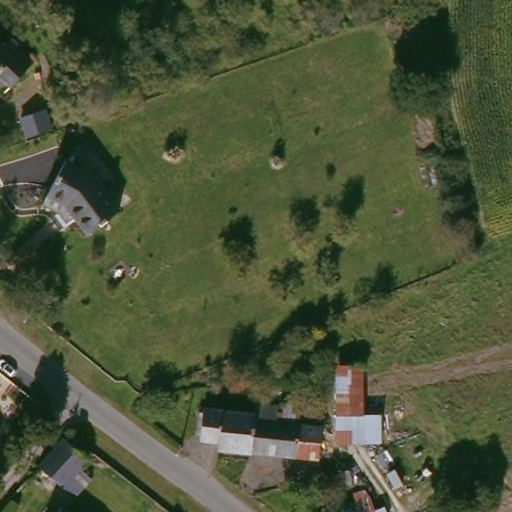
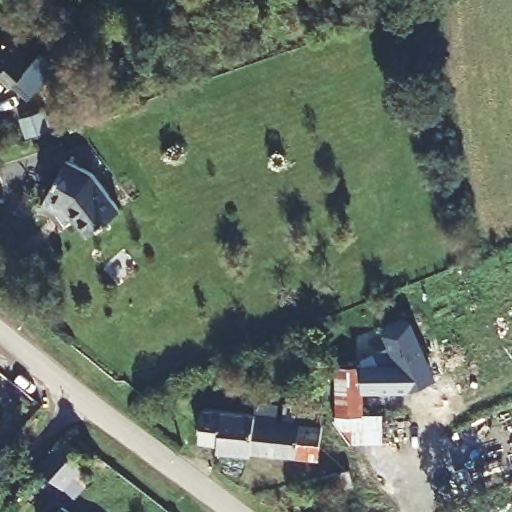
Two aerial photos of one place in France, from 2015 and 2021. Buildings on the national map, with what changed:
unchanged [(9,86),(0,77),(0,30),(34,61),(9,86)]
unchanged [(43,206),(50,194),(68,156),(91,166),(124,201),(100,228),(78,211),(71,221),(43,206)]
new [(364,373),(377,373),(371,362),(387,353),(380,340),(383,330),(393,324),(404,327),(433,382),(411,391),(363,389),(364,373)]
unchanged [(383,447),(362,447),(334,447),(335,370),(364,368),(363,418),(383,418),(383,447)]
unchanged [(196,443),(199,414),(250,421),(254,412),(274,415),(275,410),(317,415),(316,431),(313,464),(214,453),(214,446),(196,443)]
unchanged [(88,458),(80,467),(89,476),(73,494),(38,462),(39,461),(63,435),(88,458)]
unchanged [(311,484),(344,476),(347,489),(315,497),(311,484)]
unchanged [(64,510),(66,512),(62,512),(64,510)]

